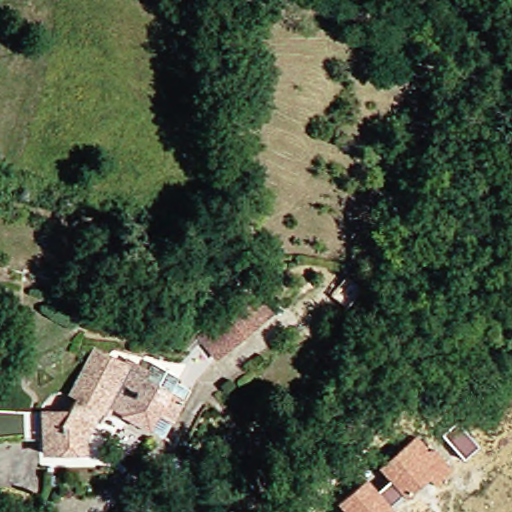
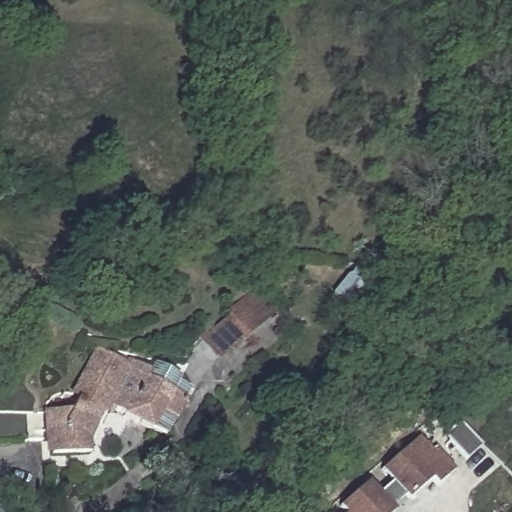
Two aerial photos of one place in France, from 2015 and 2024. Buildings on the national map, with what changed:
unchanged [(197,336),(201,333),(224,314),(221,310),(249,287),(267,310),(216,351),(212,354),(197,336)]
unchanged [(73,393),(67,390),(77,372),(92,344),(121,359),(123,355),(143,366),(138,375),(179,396),(160,432),(147,425),(146,427),(117,411),(118,410),(101,401),(82,437),(82,451),(45,451),(44,426),(39,427),(39,409),(65,409),(73,393)]
unchanged [(380,491),(389,483),(379,470),(418,437),(431,451),(434,449),(452,471),(435,486),(430,481),(406,500),(402,497),(391,506),(394,511),(394,512),(343,512),(339,506),(369,480),(380,491)]

